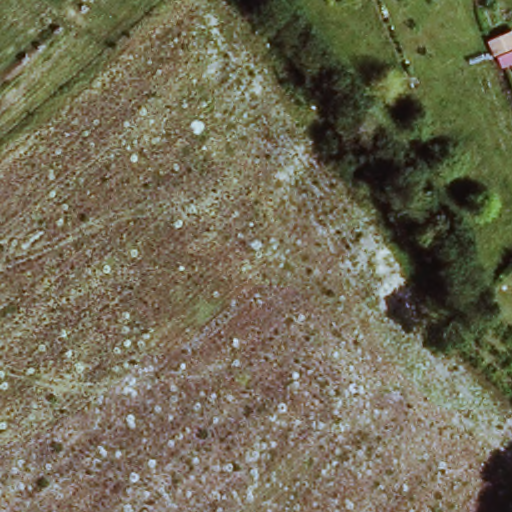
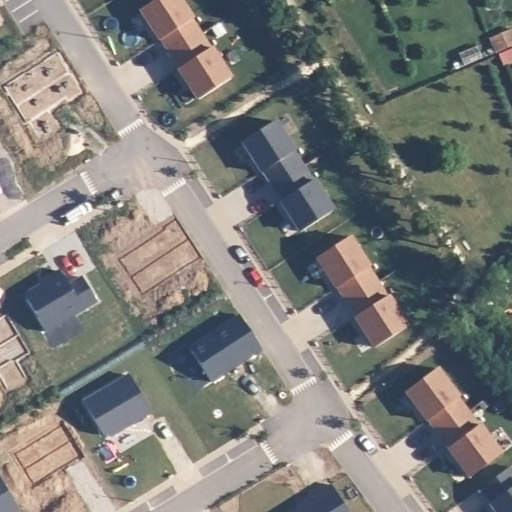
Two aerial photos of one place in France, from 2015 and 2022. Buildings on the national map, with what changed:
new [(158,0),(180,0),(193,20),(192,21),(202,35),(171,55),(162,40),(160,41),(141,11),(158,0)]
new [(202,35),(211,49),(212,49),(232,80),(199,101),(179,70),(180,69),(171,55),(202,35)]
new [(275,122),(295,153),(304,168),(274,187),(264,173),(262,174),(243,143),(275,122)]
new [(304,168),(313,182),(314,181),(334,212),(301,233),(281,202),(282,202),(274,187),(304,168)]
new [(350,238),(370,269),(369,269),(379,283),(348,303),(339,289),(337,290),(317,259),(350,238)]
new [(29,293),(46,283),(45,281),(60,272),(69,287),(83,278),(97,303),(46,333),(27,301),(29,293)]
new [(379,283),(387,298),(388,297),(408,328),(375,349),(355,318),(357,317),(348,303),(379,283)]
new [(190,350),(240,317),(262,350),(212,384),(190,350)]
new [(437,370),(460,399),(459,400),(469,413),(440,435),(430,421),(429,422),(407,393),(437,370)]
new [(130,377),(150,414),(110,438),(102,436),(84,404),(130,377)]
new [(469,413),(479,427),(480,427),(502,456),(470,479),(449,450),(450,449),(440,435),(469,413)]
new [(512,472),(512,512),(495,512),(490,505),(492,504),(481,491),(510,469),(512,472)]
new [(0,512),(0,479),(20,512),(0,512)]
new [(303,508),(319,498),(317,496),(332,487),(347,512),(298,512),(304,508),(303,508)]

